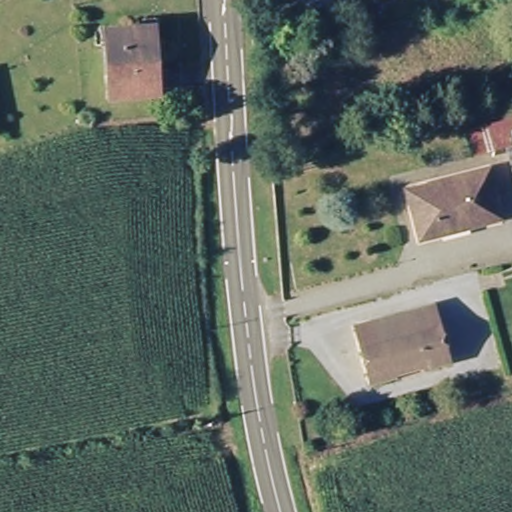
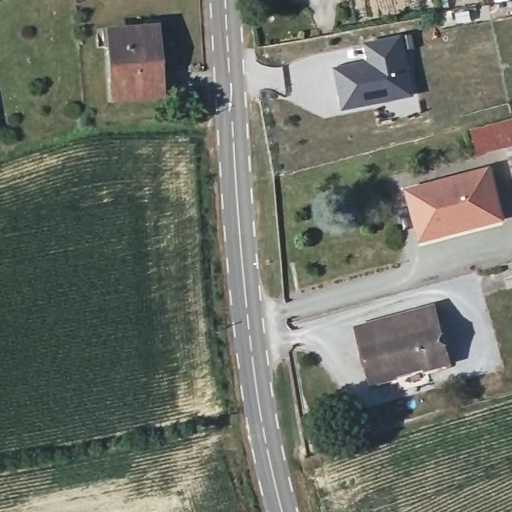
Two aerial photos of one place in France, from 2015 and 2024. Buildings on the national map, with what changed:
unchanged [(148,34),(148,26),(165,25),(166,36),(157,39),(161,97),(117,102),(114,38),(148,34)]
new [(360,45),(395,37),(398,55),(407,95),(339,110),(330,71),(364,63),(360,45)]
unchanged [(512,120),(512,170),(510,156),(479,162),(471,132),(512,120)]
unchanged [(426,246),(412,188),(495,166),(506,209),(511,223),(449,239),(426,246)]
unchanged [(373,383),(360,330),(435,309),(451,365),(433,370),(398,377),(373,383)]

